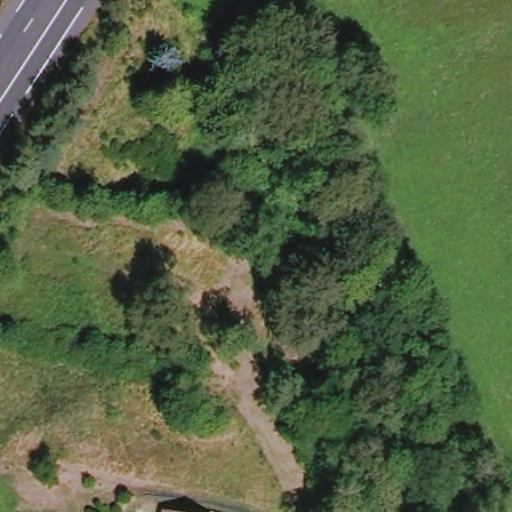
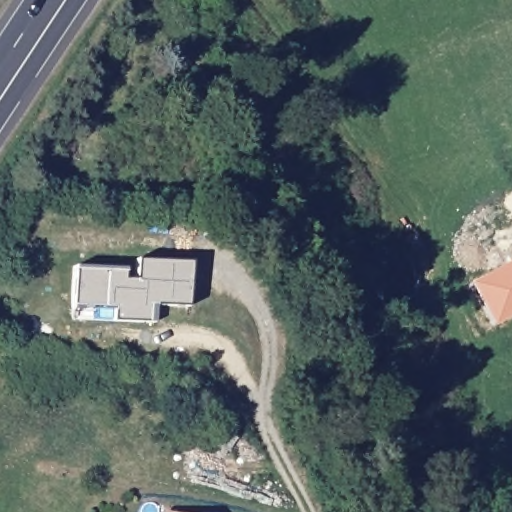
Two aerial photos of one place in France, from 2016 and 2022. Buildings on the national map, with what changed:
new [(188,307),(155,306),(155,323),(113,321),(113,309),(71,307),(73,269),(123,271),(123,281),(135,281),(136,262),(190,263),(188,307)]
new [(512,313),(497,322),(475,282),(512,262),(512,313)]
unchanged [(166,512),(158,512),(158,510),(166,512)]

